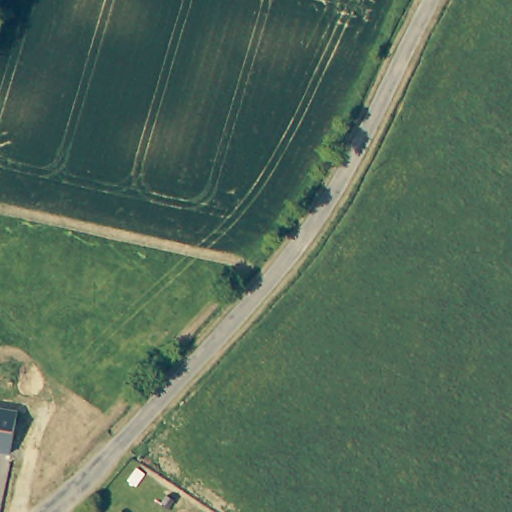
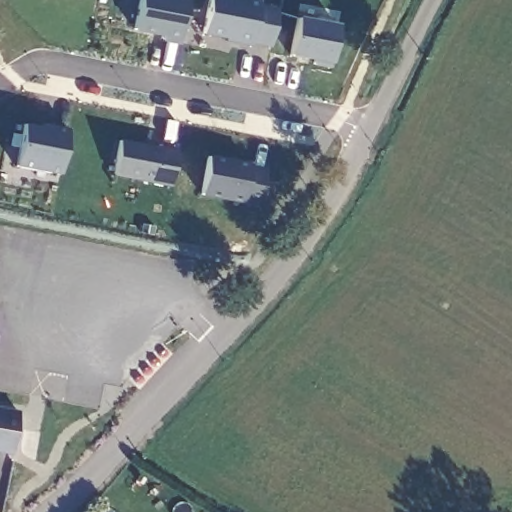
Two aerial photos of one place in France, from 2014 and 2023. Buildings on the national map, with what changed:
new [(179,44),(163,41),(164,34),(130,28),(137,0),(188,0),(179,44)]
new [(269,48),(201,35),(208,0),(249,0),(259,2),(258,6),(276,9),(269,48)]
new [(59,176),(14,168),(21,124),(38,127),(38,123),(66,128),(59,176)]
new [(168,188),(110,177),(118,138),(175,149),(168,188)]
new [(249,167),(265,170),(259,206),(197,196),(204,154),(249,162),(249,167)]
unchanged [(10,453),(0,451),(0,407),(18,410),(10,453)]

